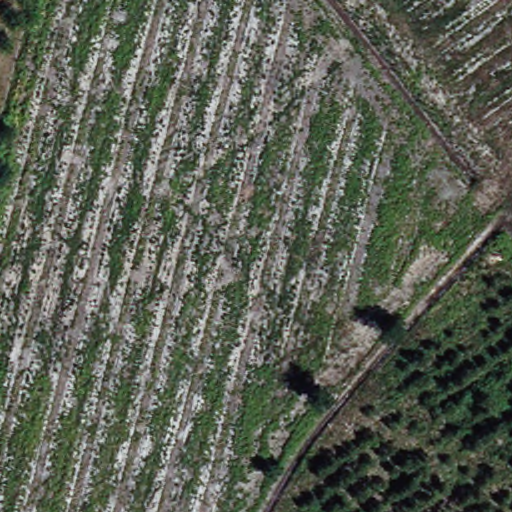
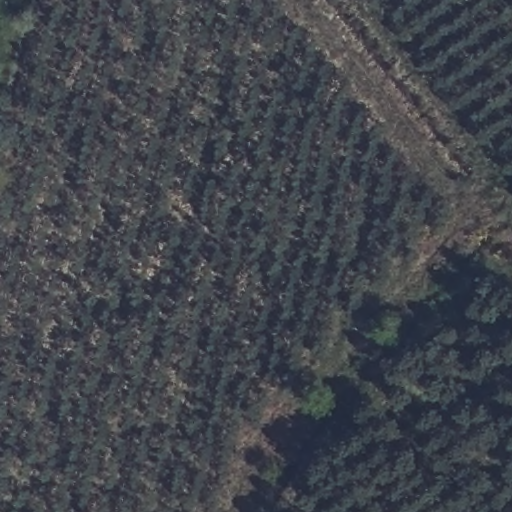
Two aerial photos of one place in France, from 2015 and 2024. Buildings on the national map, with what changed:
[]

